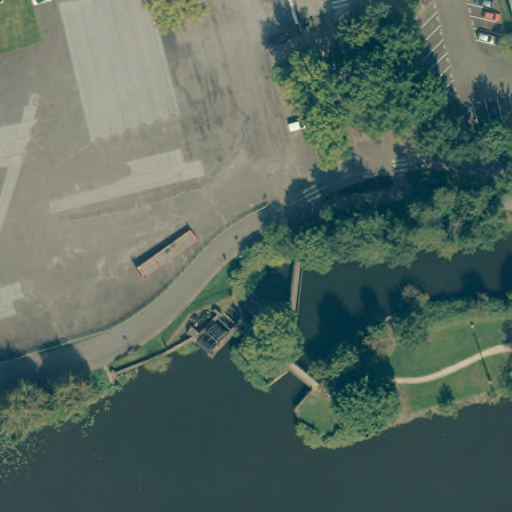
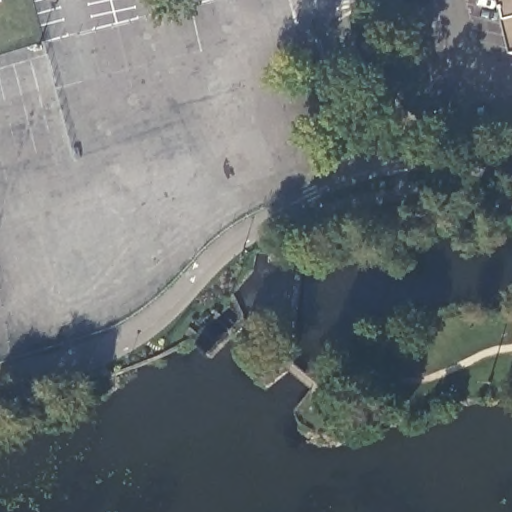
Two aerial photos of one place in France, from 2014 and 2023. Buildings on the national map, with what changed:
unchanged [(3,1),(0,1),(0,0),(3,0),(3,1)]
unchanged [(512,10),(510,0),(512,0),(512,10)]

